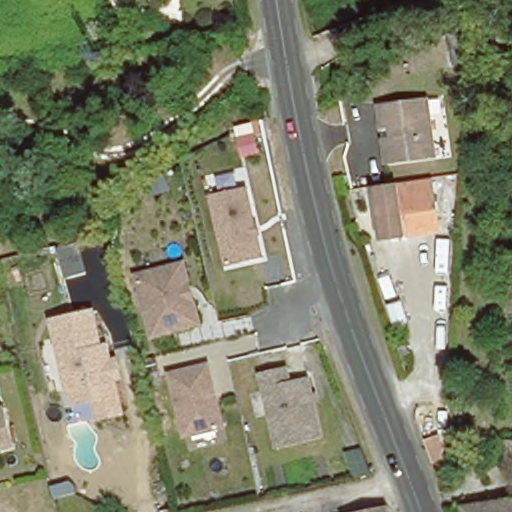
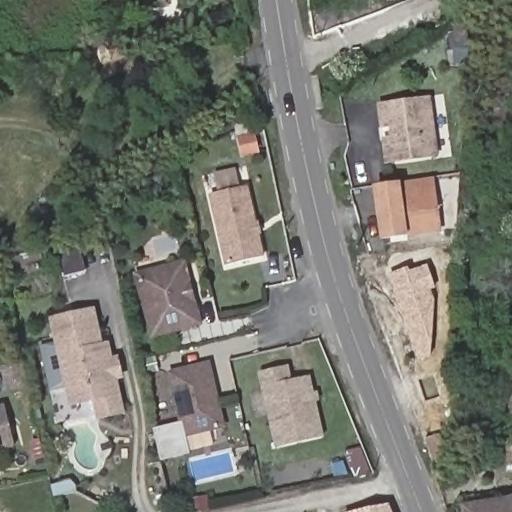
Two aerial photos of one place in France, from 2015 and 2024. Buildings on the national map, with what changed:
unchanged [(140,31),(138,19),(158,16),(160,29),(140,31)]
unchanged [(381,109),(431,103),(438,160),(389,166),(386,144),(384,131),(381,109)]
new [(254,123),(259,152),(241,155),(236,126),(254,123)]
unchanged [(404,235),(381,239),(374,189),(430,182),(434,211),(437,231),(404,235)]
unchanged [(215,192),(250,184),(265,255),(229,263),(215,192)]
unchanged [(193,283),(196,297),(201,322),(155,332),(141,272),(188,261),(193,283)]
new [(433,358),(418,363),(388,275),(427,266),(435,289),(431,292),(435,301),(433,358)]
unchanged [(100,422),(96,403),(71,408),(50,322),(97,308),(104,343),(111,342),(114,358),(121,357),(126,379),(122,381),(129,414),(100,422)]
unchanged [(396,348),(404,345),(407,354),(399,356),(396,348)]
unchanged [(172,372),(211,363),(225,426),(186,434),(172,372)]
unchanged [(260,377),(287,370),(290,384),(308,381),(322,441),(278,452),(260,377)]
unchanged [(8,405),(19,445),(0,450),(0,407),(8,405)]
unchanged [(504,442),(512,442),(512,465),(504,464),(504,442)]
unchanged [(464,500),(512,493),(512,512),(465,512),(464,500)]
unchanged [(389,511),(390,512),(382,512),(389,511)]

